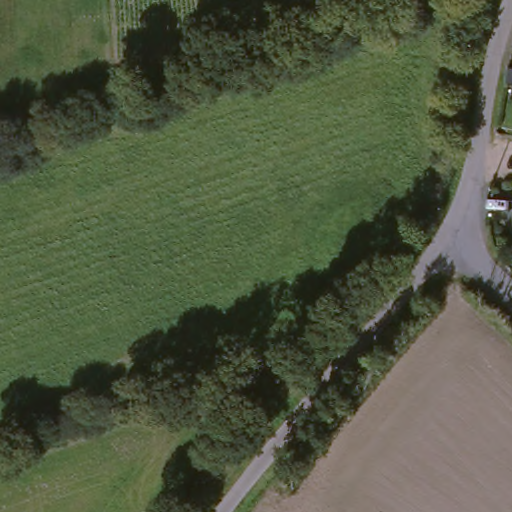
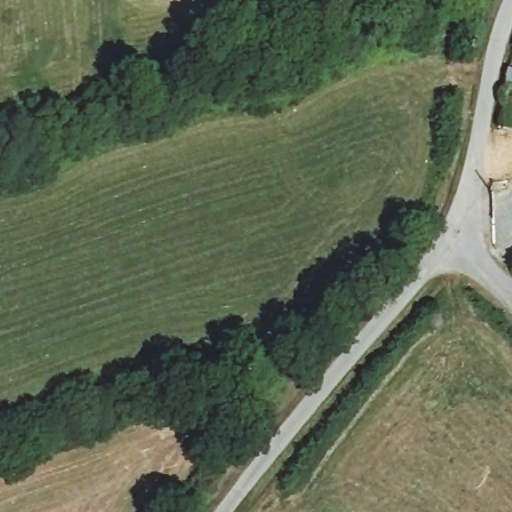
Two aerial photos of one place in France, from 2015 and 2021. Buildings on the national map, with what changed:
unchanged [(512,52),(509,52),(512,41),(512,52)]

